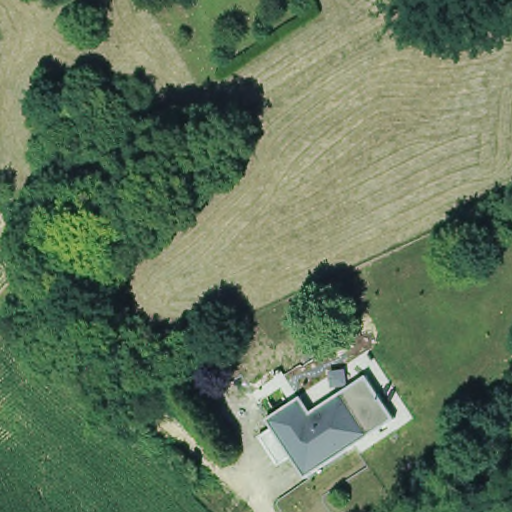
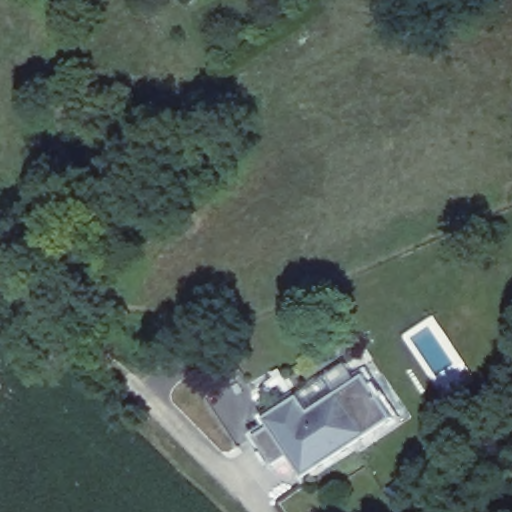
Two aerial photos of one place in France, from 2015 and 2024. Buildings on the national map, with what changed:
unchanged [(272,424),(305,402),(316,417),(347,396),(375,439),(311,482),(272,424)]

